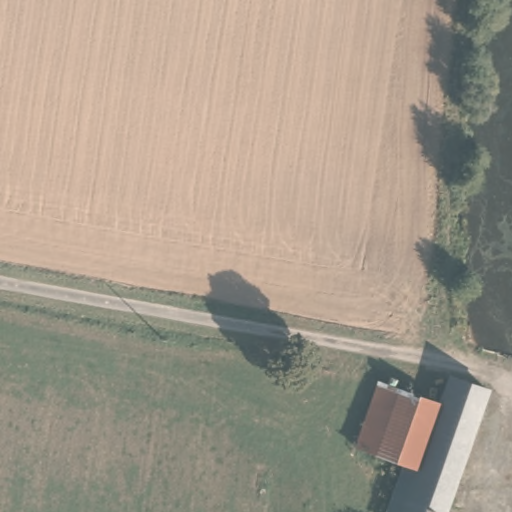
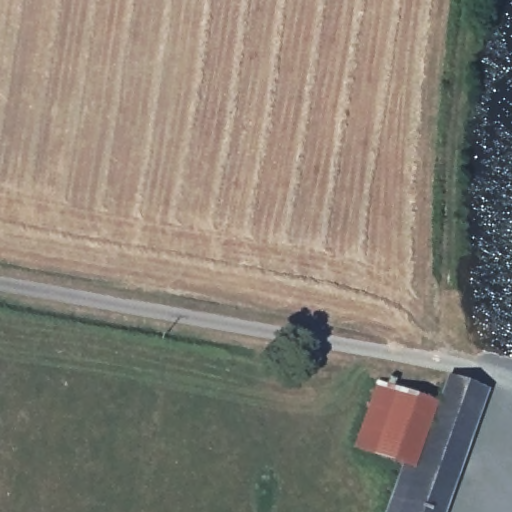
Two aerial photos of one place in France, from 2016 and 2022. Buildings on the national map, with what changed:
unchanged [(445,512),(390,512),(406,462),(418,466),(442,401),(450,374),(486,389),(445,512)]
unchanged [(356,447),(378,382),(442,401),(418,466),(406,462),(356,447)]

